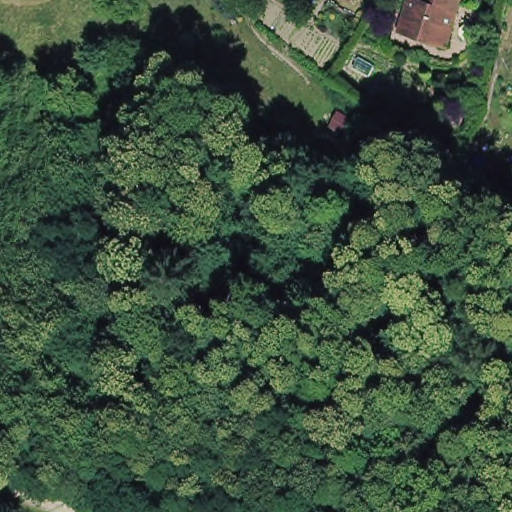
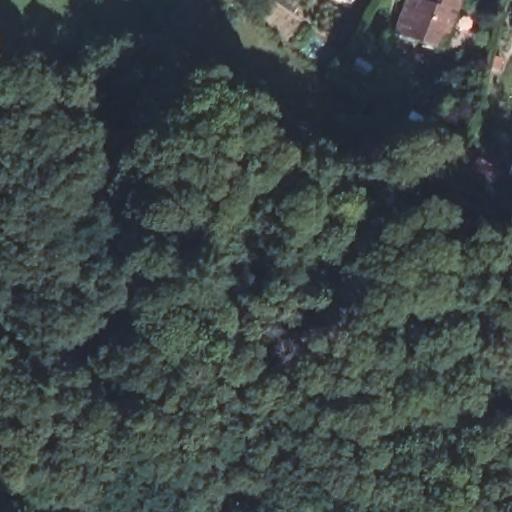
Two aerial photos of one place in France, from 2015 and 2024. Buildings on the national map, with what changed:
unchanged [(455,36),(452,35),(447,50),(402,35),(412,2),(422,5),(424,0),(457,0),(463,2),(458,18),(460,19),(455,36)]

